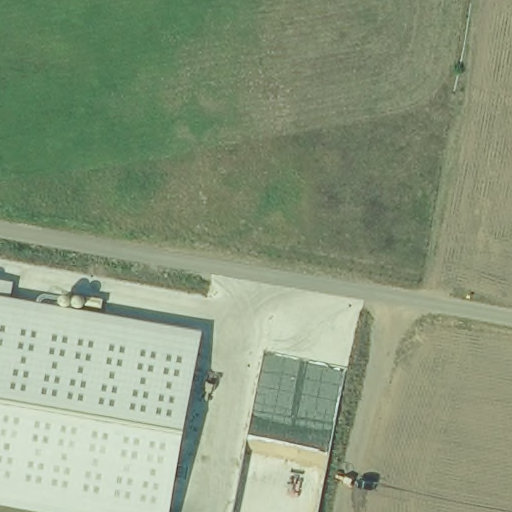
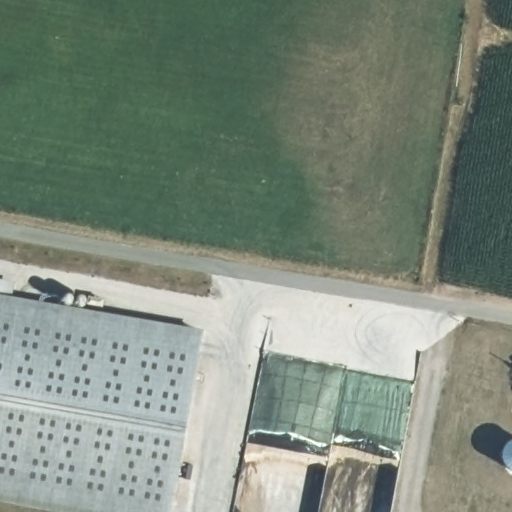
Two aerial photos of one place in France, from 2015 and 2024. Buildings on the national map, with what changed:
unchanged [(172,512),(51,512),(0,503),(0,296),(204,332),(172,512)]

